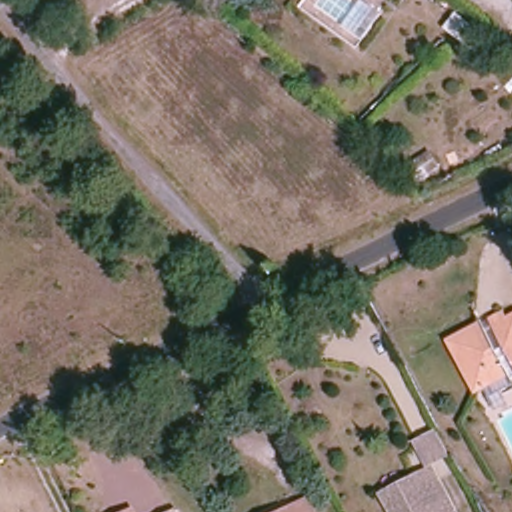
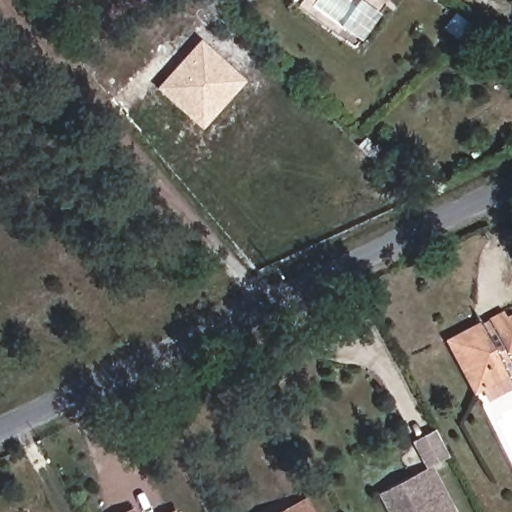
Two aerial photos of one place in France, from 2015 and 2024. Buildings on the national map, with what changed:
new [(247,81),(202,130),(155,87),(200,40),(247,81)]
unchanged [(509,381),(507,376),(487,381),(488,387),(479,387),(478,380),(462,372),(458,362),(449,340),(471,329),(481,324),(486,335),(496,332),(491,319),(510,315),(512,314),(512,379),(509,381)]
unchanged [(454,506),(442,512),(390,512),(387,507),(380,495),(417,474),(432,466),(454,506)]
unchanged [(294,508),(306,503),(310,512),(280,512),(293,506),(294,508)]

